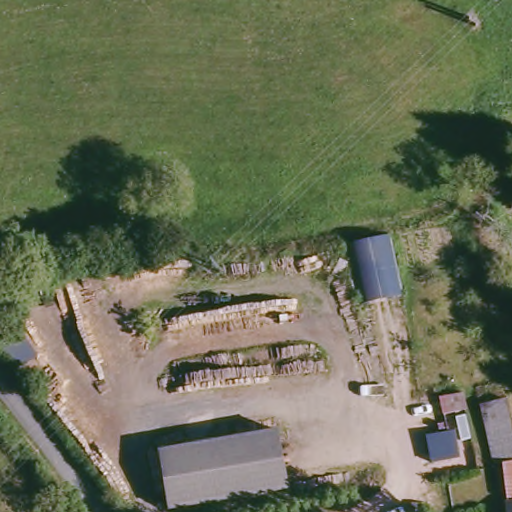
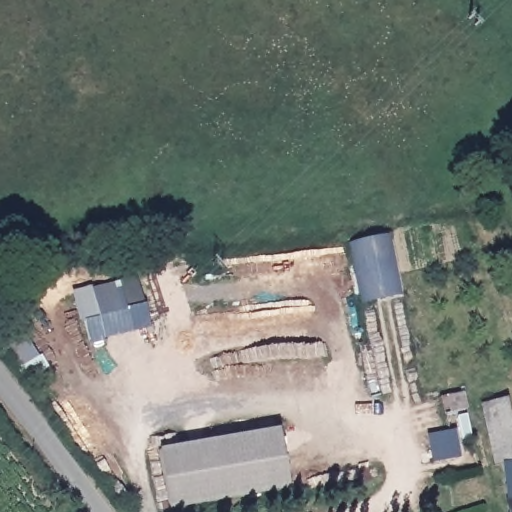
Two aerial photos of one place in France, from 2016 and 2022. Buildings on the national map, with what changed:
unchanged [(390,235),(396,253),(416,252),(419,269),(402,273),(405,296),(417,295),(424,322),(360,337),(357,305),(367,304),(352,245),(390,235)]
new [(142,276),(153,318),(93,334),(82,292),(142,276)]
unchanged [(469,394),(485,460),(459,467),(442,399),(469,394)]
unchanged [(508,461),(498,463),(480,400),(505,394),(512,417),(512,481),(508,461)]
unchanged [(284,428),(292,490),(170,511),(161,448),(284,428)]

